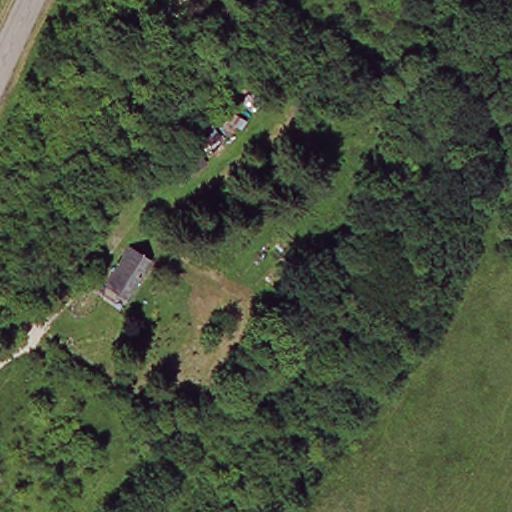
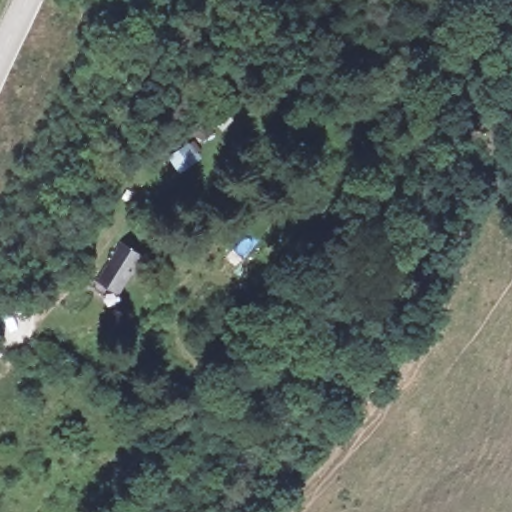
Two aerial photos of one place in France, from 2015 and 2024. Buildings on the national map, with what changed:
unchanged [(120,248),(145,263),(124,298),(97,281),(120,248)]

